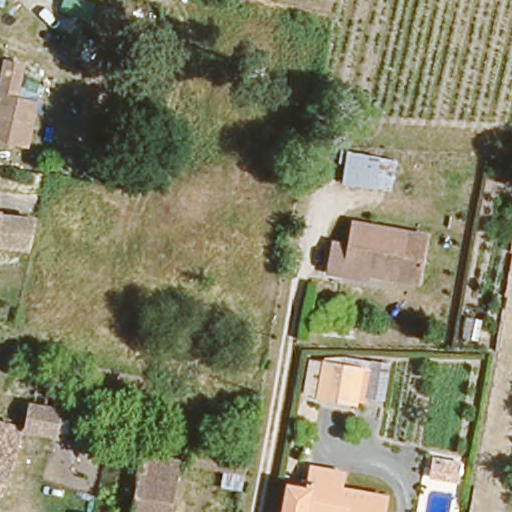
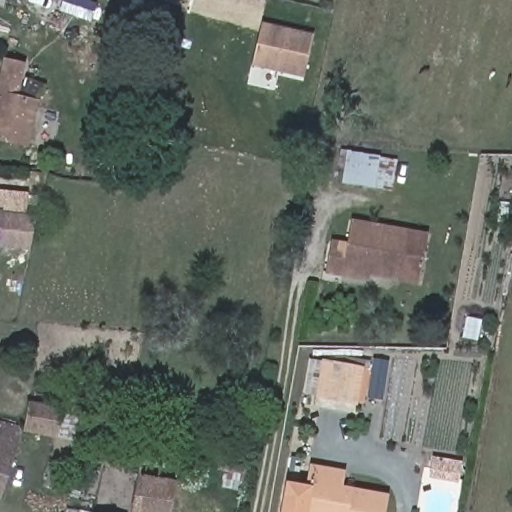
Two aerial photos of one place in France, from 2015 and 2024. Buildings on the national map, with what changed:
new [(304,78),(253,66),(262,23),(315,34),(304,78)]
unchanged [(0,136),(0,77),(4,59),(20,63),(13,94),(33,100),(23,141),(0,136)]
unchanged [(390,184),(341,179),(347,147),(397,154),(390,184)]
unchanged [(0,209),(5,210),(7,201),(32,205),(30,212),(37,213),(30,246),(0,243),(0,209)]
unchanged [(348,271),(340,269),(346,240),(354,241),(358,219),(422,230),(413,276),(375,268),(374,275),(348,271)]
unchanged [(383,397),(358,392),(356,402),(313,394),(319,354),(343,358),(344,351),(390,357),(383,397)]
unchanged [(19,425),(25,400),(39,402),(43,379),(49,380),(45,404),(56,407),(52,432),(19,425)]
unchanged [(0,480),(0,420),(17,424),(0,480)]
unchanged [(192,440),(245,451),(239,484),(214,479),(218,460),(189,454),(192,440)]
unchanged [(125,512),(137,449),(141,449),(178,457),(168,512),(125,512)]
unchanged [(277,512),(283,477),(305,481),(308,458),(345,465),(342,480),(388,490),(384,512),(277,512)]

